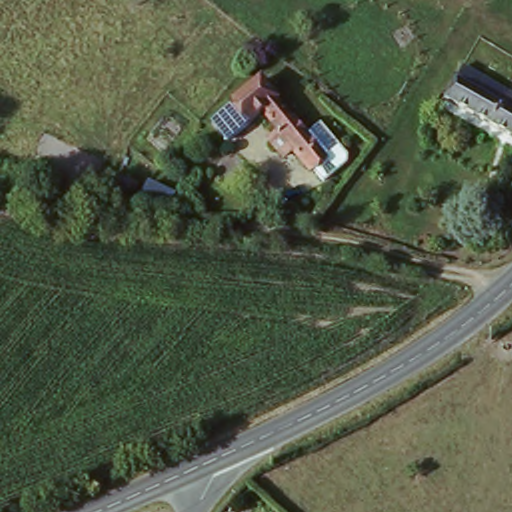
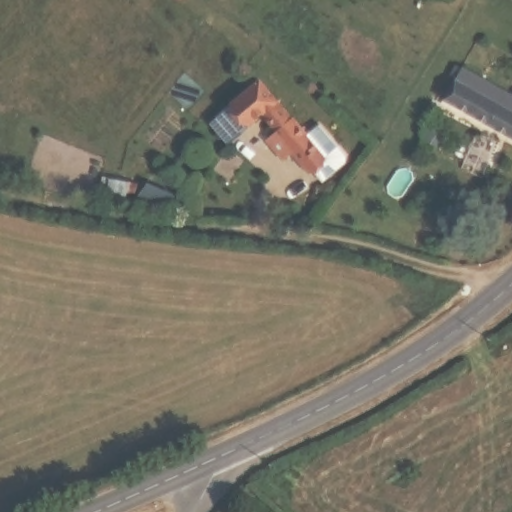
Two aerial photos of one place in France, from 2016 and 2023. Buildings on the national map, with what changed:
unchanged [(512,94),(512,149),(437,110),(457,67),(512,94)]
unchanged [(208,114),(265,80),(325,176),(309,186),(288,155),(278,162),(267,142),(275,139),(262,115),(222,140),(208,114)]

